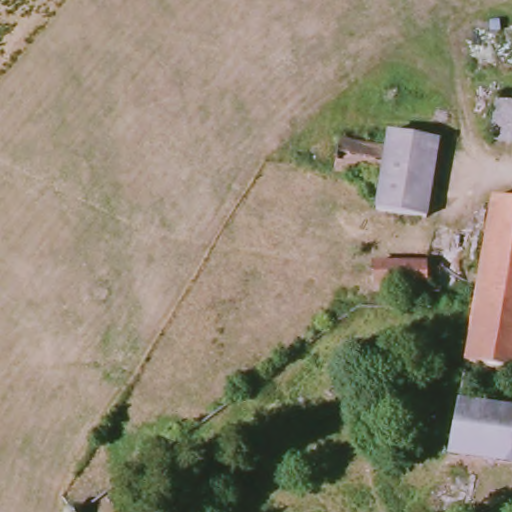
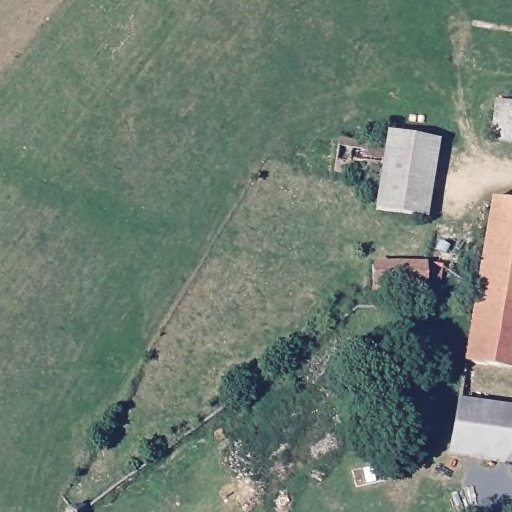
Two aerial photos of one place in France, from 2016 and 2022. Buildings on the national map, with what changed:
unchanged [(509,134),(512,116),(512,134),(509,134)]
unchanged [(344,140),(386,147),(389,134),(441,139),(434,220),(379,212),(383,184),(336,172),(344,140)]
unchanged [(494,202),(512,204),(512,254),(486,250),(494,202)]
unchanged [(471,367),(479,305),(479,293),(486,250),(512,254),(512,374),(471,367)]
unchanged [(377,263),(431,262),(430,296),(376,294),(377,263)]
unchanged [(463,402),(512,408),(512,464),(454,456),(463,402)]

